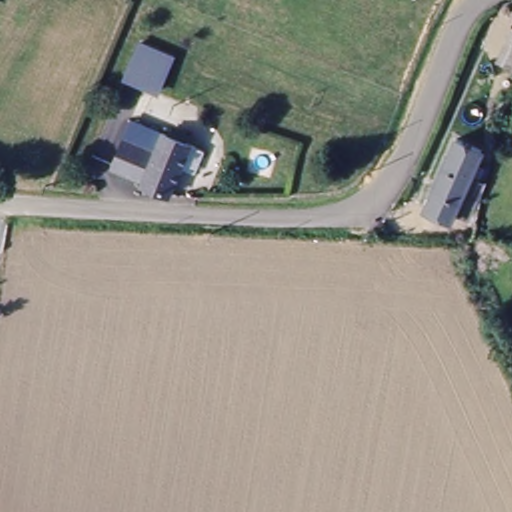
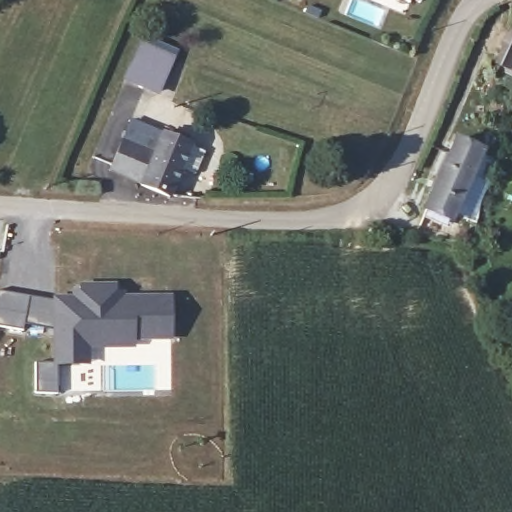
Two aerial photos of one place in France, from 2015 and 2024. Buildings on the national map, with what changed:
new [(408,0),(413,0),(412,1),(408,0)]
unchanged [(145,40),(165,48),(178,54),(163,88),(150,83),(131,74),(145,40)]
unchanged [(512,70),(500,64),(512,41),(512,70)]
unchanged [(145,187),(109,175),(123,145),(132,123),(166,138),(171,141),(174,133),(191,141),(188,147),(207,156),(198,178),(184,172),(170,201),(164,199),(143,191),(145,187)]
unchanged [(467,225),(453,220),(426,208),(458,139),(484,150),(472,176),(486,182),(467,225)]
new [(52,362),(52,328),(25,322),(24,330),(0,326),(0,290),(50,298),(51,293),(71,295),(73,288),(74,283),(118,283),(118,291),(172,292),(172,339),(135,341),(135,346),(102,349),(102,358),(92,358),(91,363),(58,365),(58,392),(36,392),(36,362),(52,362)]

